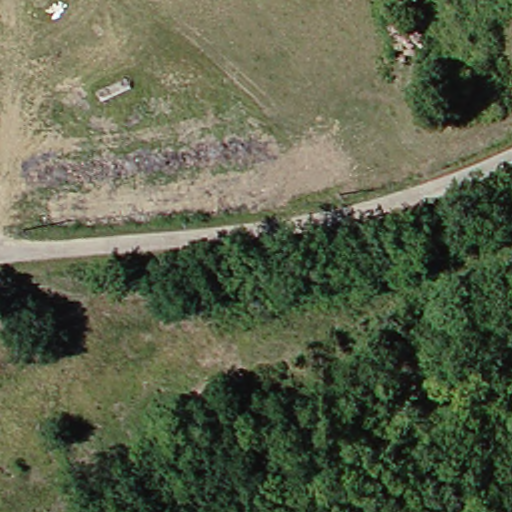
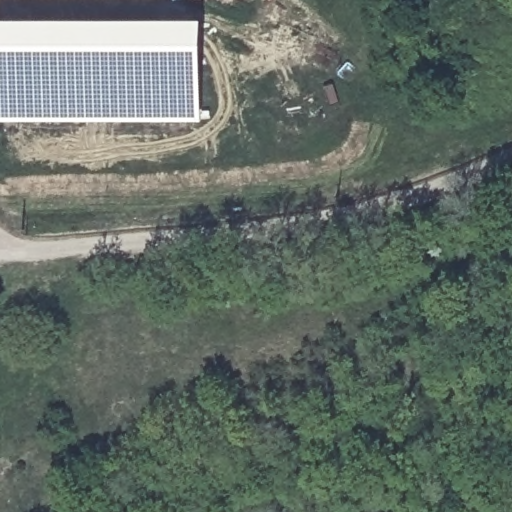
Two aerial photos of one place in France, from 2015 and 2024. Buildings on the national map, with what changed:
new [(0,123),(0,21),(200,21),(200,124),(0,123)]

